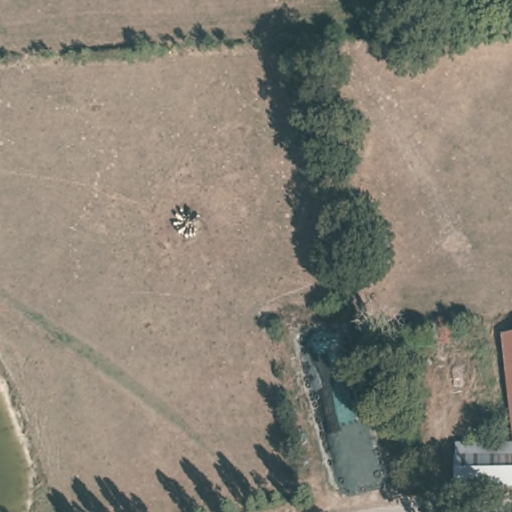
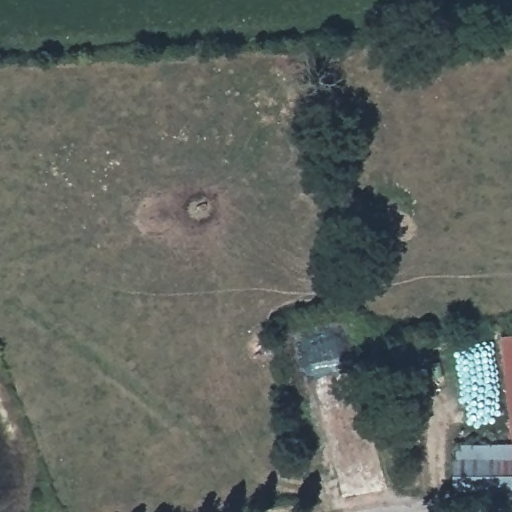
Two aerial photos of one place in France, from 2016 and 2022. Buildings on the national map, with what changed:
unchanged [(512,448),(506,336),(512,336),(512,448)]
unchanged [(456,489),(456,447),(512,448),(512,490),(456,489)]

